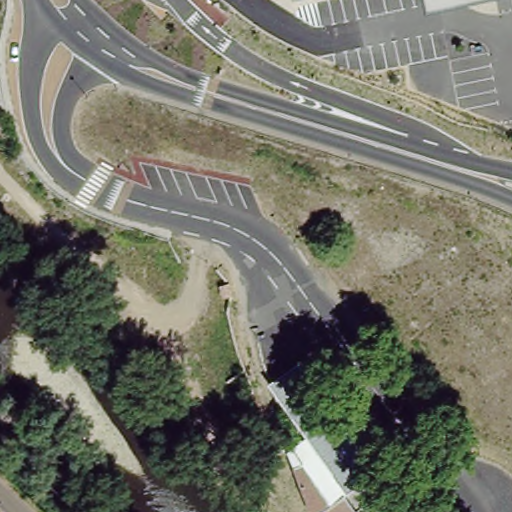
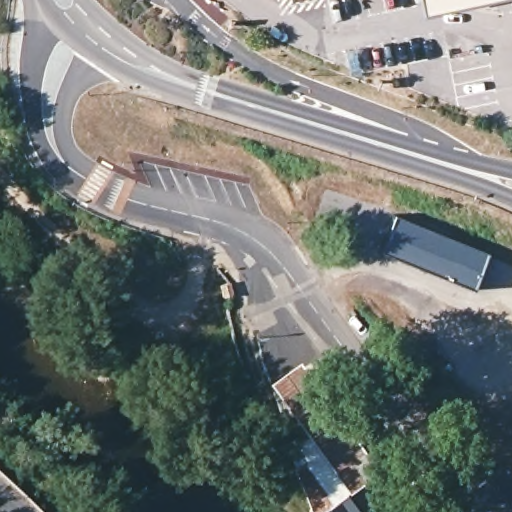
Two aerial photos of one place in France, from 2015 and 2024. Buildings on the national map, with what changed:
unchanged [(426,0),(469,0),(427,8),(426,0)]
new [(487,253),(474,289),(380,251),(395,216),(487,253)]
unchanged [(294,355),(372,463),(342,486),(302,430),(263,377),(294,355)]
unchanged [(307,510),(283,446),(289,440),(302,430),(342,486),(338,489),(355,512),(309,512),(307,510)]

